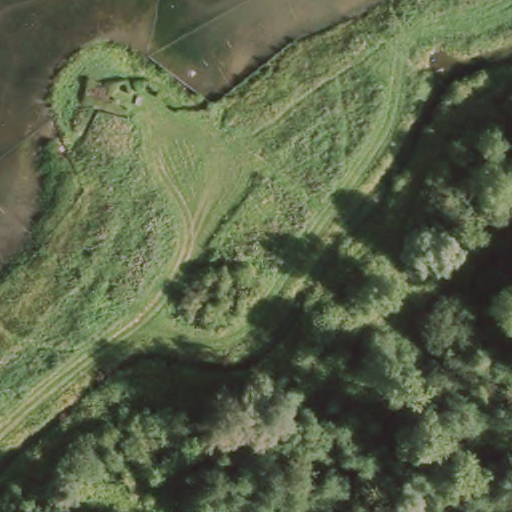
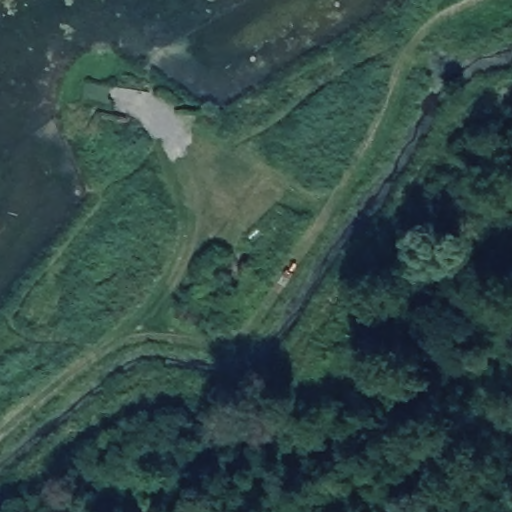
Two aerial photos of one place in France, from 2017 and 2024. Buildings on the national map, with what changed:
unchanged [(87,78),(110,84),(105,101),(83,96),(87,78)]

